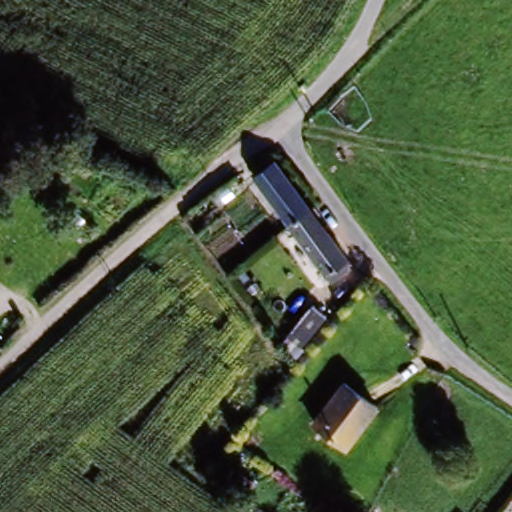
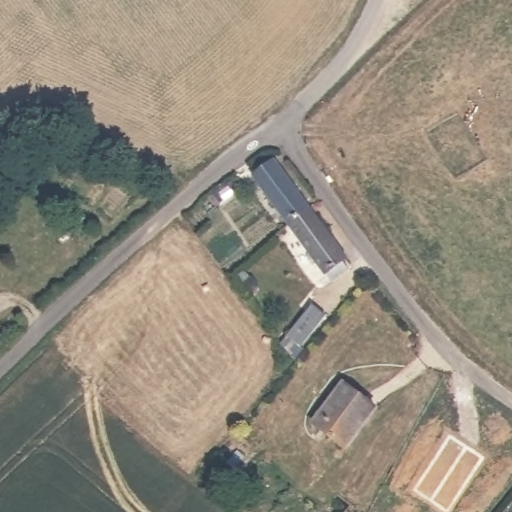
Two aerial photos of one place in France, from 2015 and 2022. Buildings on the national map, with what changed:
unchanged [(285,212),(256,167),(276,154),(304,199),(285,212)]
unchanged [(323,260),(318,264),(285,212),(304,199),(337,250),(332,254),(338,261),(328,268),(323,260)]
unchanged [(310,309),(318,317),(300,337),(291,330),(310,309)]
unchanged [(315,423),(344,385),(376,411),(345,450),(315,423)]

